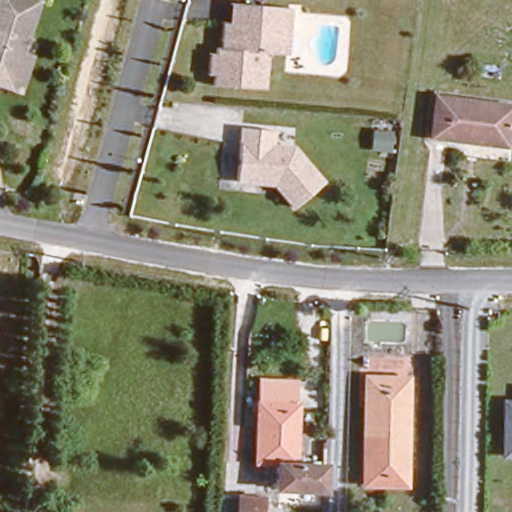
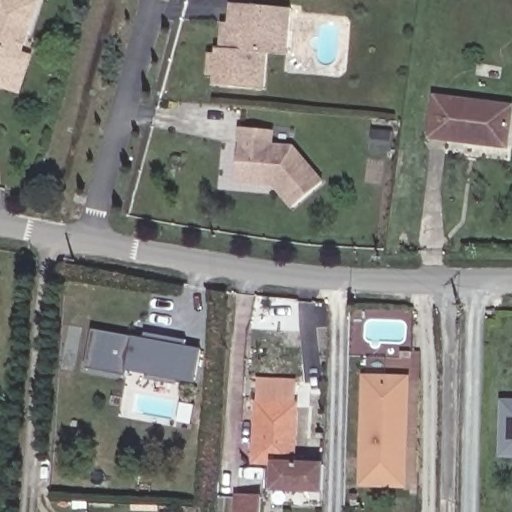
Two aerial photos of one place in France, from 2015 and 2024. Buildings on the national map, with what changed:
unchanged [(36,0),(39,1),(26,38),(23,36),(18,50),(22,51),(31,55),(18,91),(9,88),(0,85),(0,0),(36,0)]
unchanged [(217,53),(217,47),(222,47),(223,22),(231,23),(232,3),(292,8),(291,30),(289,55),(278,54),(268,54),(266,89),(215,85),(215,74),(209,74),(210,52),(217,53)]
unchanged [(427,137),(430,96),(460,100),(454,140),(427,137)]
unchanged [(510,106),(506,146),(454,140),(460,100),(510,106)]
unchanged [(274,130),(273,145),(295,146),(325,183),(295,208),(272,180),(265,180),(263,183),(238,181),(241,128),(274,130)]
new [(196,383),(129,370),(128,376),(86,368),(94,328),(203,349),(196,383)]
unchanged [(407,375),(404,478),(368,477),(358,476),(362,373),(370,373),(407,375)]
unchanged [(299,400),(297,460),(323,461),(321,485),(275,484),(276,459),(254,458),(257,397),(299,400)]
unchanged [(503,408),(512,408),(512,459),(506,460),(503,408)]
unchanged [(262,501),(261,512),(231,512),(231,500),(262,501)]

